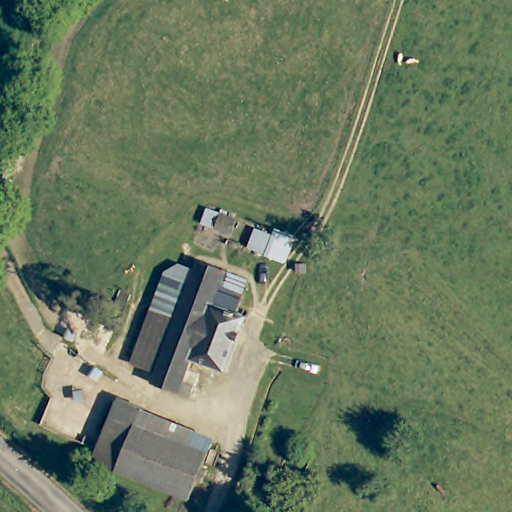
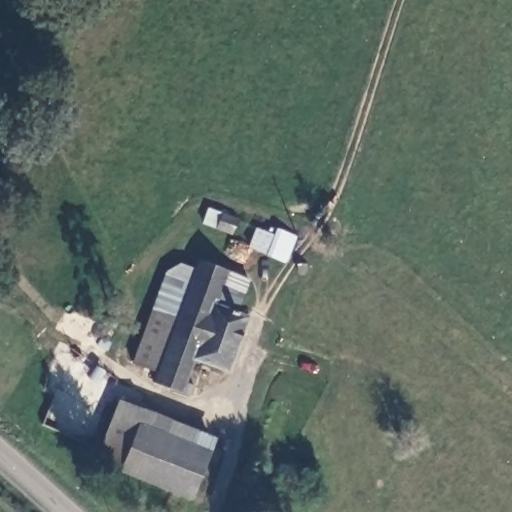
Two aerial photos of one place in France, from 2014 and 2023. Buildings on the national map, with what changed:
unchanged [(231,235),(215,229),(202,225),(209,210),(222,215),(236,221),(231,235)]
unchanged [(297,238),(288,262),(268,255),(250,248),(257,230),(275,238),(278,230),(297,238)]
unchanged [(196,279),(204,256),(252,276),(241,308),(252,313),(232,369),(199,356),(189,380),(197,384),(194,393),(158,379),(162,367),(182,315),(196,279)]
unchanged [(196,279),(182,315),(157,306),(169,271),(196,279)]
unchanged [(162,367),(139,358),(157,306),(182,315),(162,367)]
unchanged [(189,500),(119,473),(96,464),(120,401),(143,410),(214,437),(189,500)]

